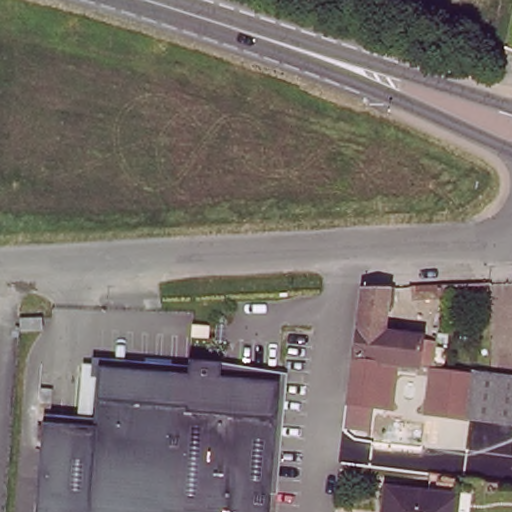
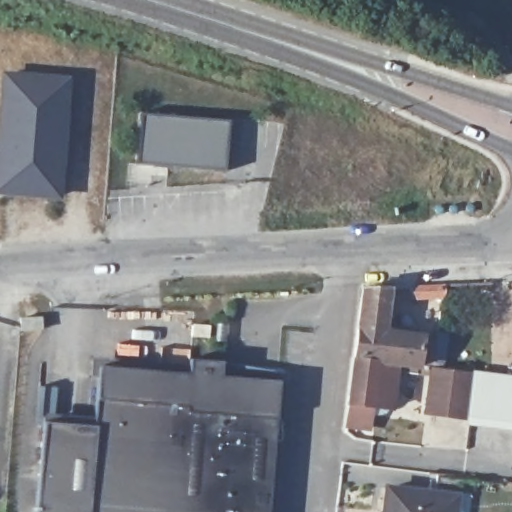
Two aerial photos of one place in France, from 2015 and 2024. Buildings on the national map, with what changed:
new [(67,80),(62,136),(61,151),(57,196),(0,191),(0,125),(4,75),(67,80)]
new [(140,113),(229,120),(225,171),(170,167),(154,166),(154,165),(136,165),(140,113)]
unchanged [(410,296),(409,284),(440,283),(438,295),(410,296)]
unchanged [(360,286),(380,285),(392,285),(389,306),(382,305),(379,330),(416,335),(412,365),(410,372),(389,370),(390,366),(391,358),(352,353),(360,286)]
unchanged [(210,325),(209,336),(191,335),(192,324),(210,325)]
unchanged [(344,422),(345,401),(352,353),(391,358),(390,366),(389,370),(385,406),(368,405),(365,425),(344,422)]
unchanged [(93,425),(98,365),(188,372),(189,357),(222,360),(221,375),(280,380),(268,512),(35,512),(42,420),(93,425)]
unchanged [(500,420),(471,417),(469,439),(433,435),(435,412),(427,411),(432,367),(433,359),(435,360),(443,360),(442,368),(485,374),(512,377),(512,422),(500,420)]
unchanged [(454,512),(384,512),(387,486),(457,495),(454,512)]

